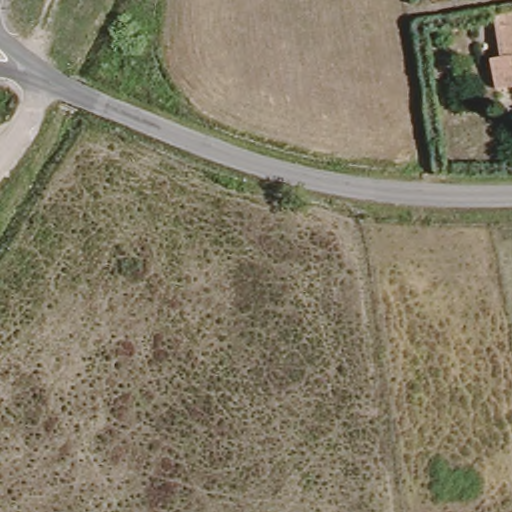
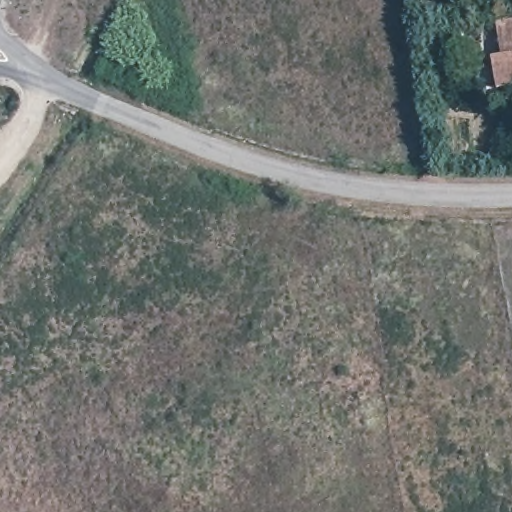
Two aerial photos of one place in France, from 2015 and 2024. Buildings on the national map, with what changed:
unchanged [(503,94),(497,64),(506,62),(499,23),(512,21),(512,92),(503,94)]

